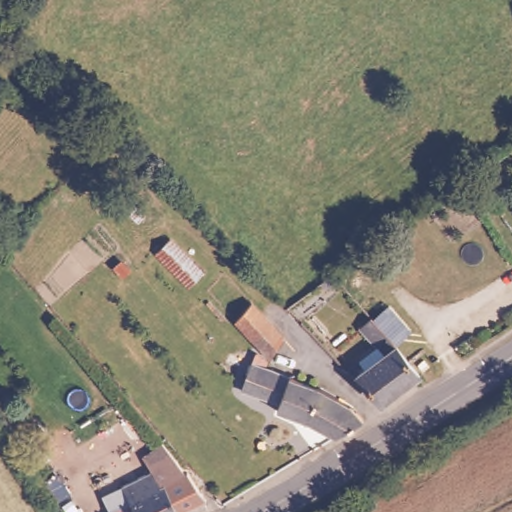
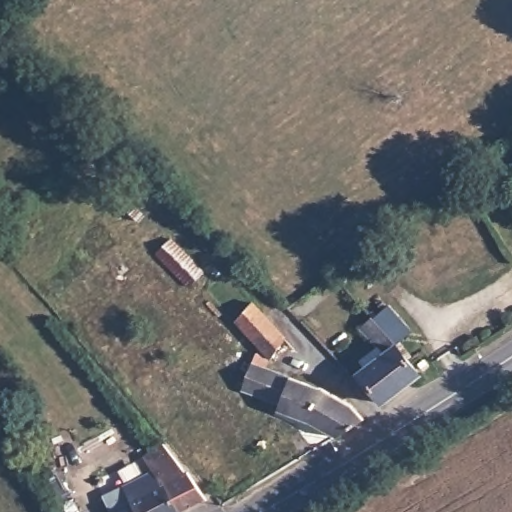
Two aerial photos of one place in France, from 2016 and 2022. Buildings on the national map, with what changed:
unchanged [(209,267),(184,287),(147,251),(172,228),(209,267)]
unchanged [(342,282),(329,293),(322,285),(335,274),(342,282)]
unchanged [(269,359),(238,322),(252,306),(274,328),(285,339),(269,359)]
unchanged [(359,331),(375,318),(399,344),(399,348),(425,378),(380,407),(370,390),(362,390),(352,376),(381,354),(359,331)]
unchanged [(314,425),(276,412),(273,406),(241,396),(257,359),(267,362),(267,368),(337,395),(364,423),(334,440),(314,425)]
unchanged [(424,369),(430,364),(434,369),(429,374),(424,369)]
unchanged [(141,475),(150,488),(158,483),(153,469),(164,463),(180,476),(197,501),(177,512),(104,512),(117,503),(111,489),(138,475),(141,475)]

